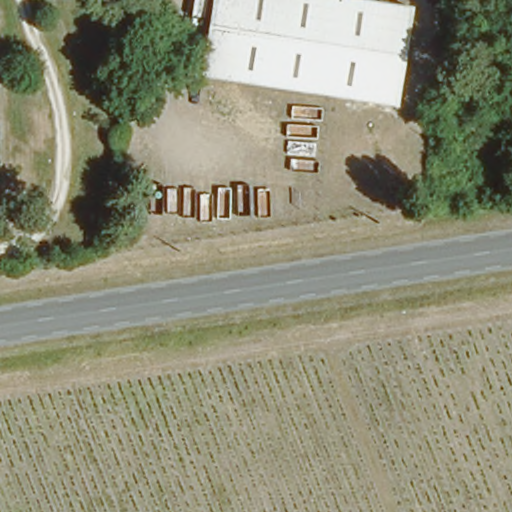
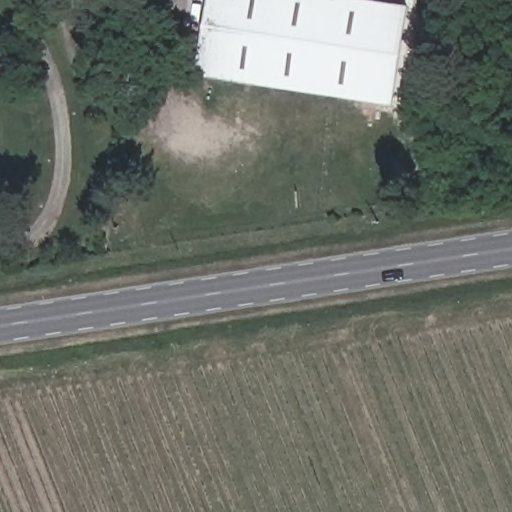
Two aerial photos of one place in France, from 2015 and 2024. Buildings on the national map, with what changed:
unchanged [(392,0),(407,2),(393,98),(205,70),(217,0),(392,0)]

